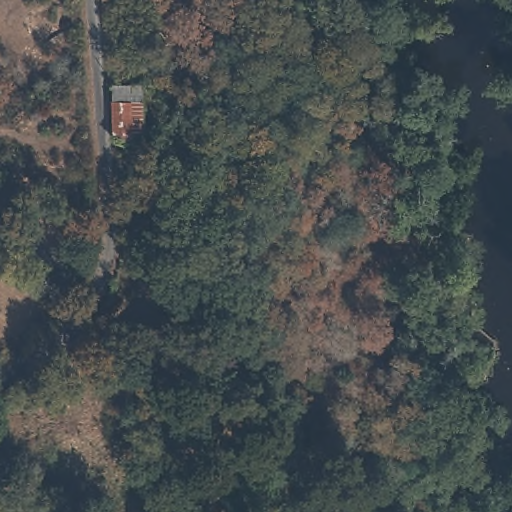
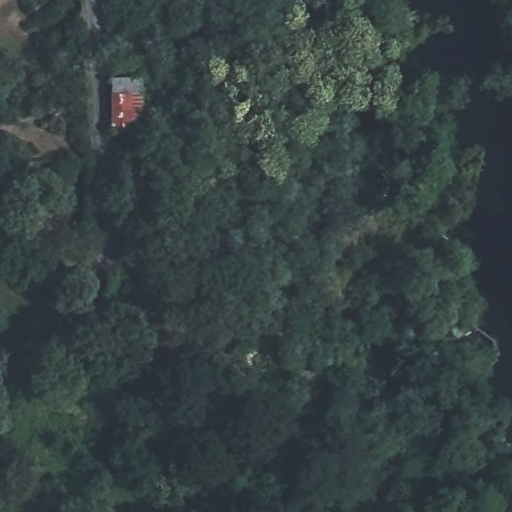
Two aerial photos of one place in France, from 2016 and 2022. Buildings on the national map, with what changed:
unchanged [(114,131),(112,79),(140,78),(143,130),(114,131)]
unchanged [(222,238),(230,260),(170,281),(162,259),(222,238)]

